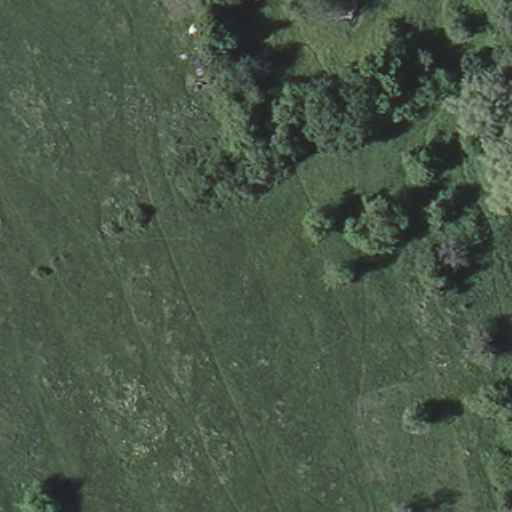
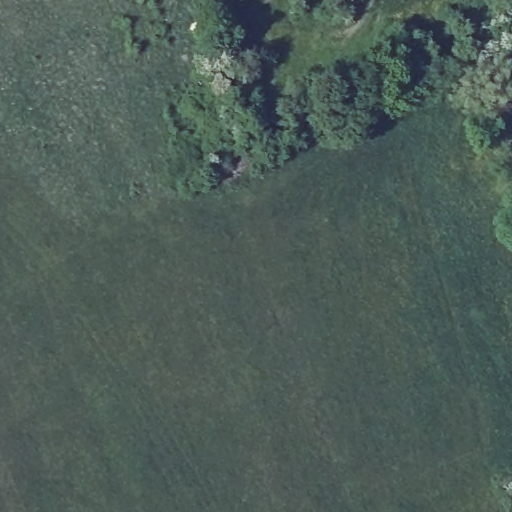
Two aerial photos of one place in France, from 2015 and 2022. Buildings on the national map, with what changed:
[]

